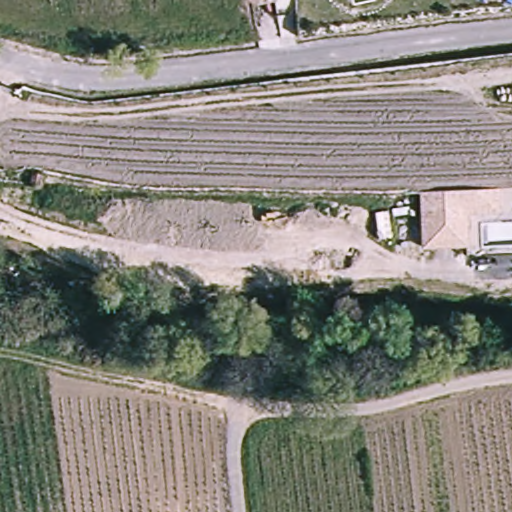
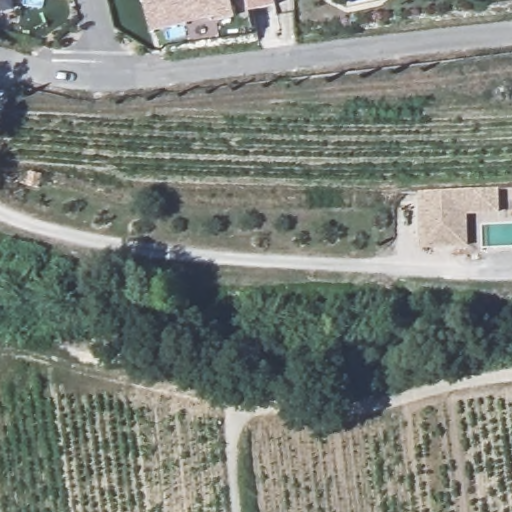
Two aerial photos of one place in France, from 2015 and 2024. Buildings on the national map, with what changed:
new [(236,18),(216,24),(214,18),(153,35),(142,0),(231,0),(236,18)]
unchanged [(499,212),(470,212),(470,245),(421,249),(419,194),(500,192),(499,212)]

